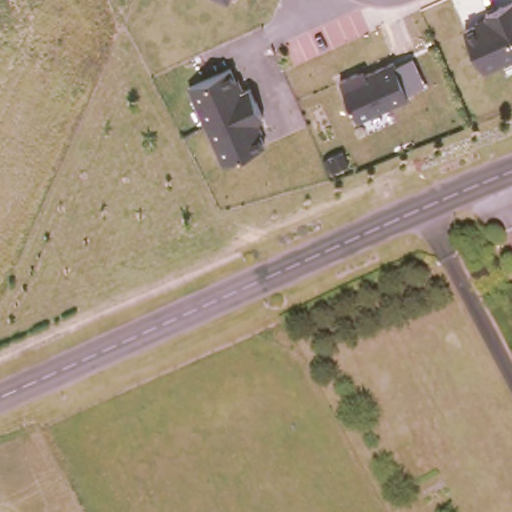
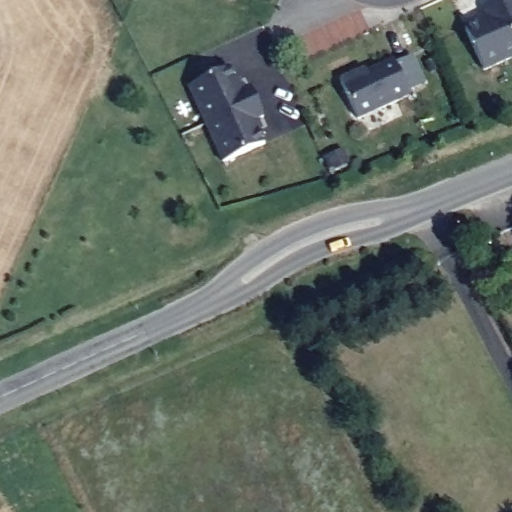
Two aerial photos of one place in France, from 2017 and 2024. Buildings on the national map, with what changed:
unchanged [(463,26),(485,16),(484,12),(511,0),(512,0),(512,57),(483,70),(463,26)]
unchanged [(410,95),(356,118),(338,78),(365,65),(367,70),(393,59),(410,95)]
unchanged [(242,88),(250,84),(263,120),(255,123),(264,143),(222,162),(187,86),(232,65),(242,88)]

